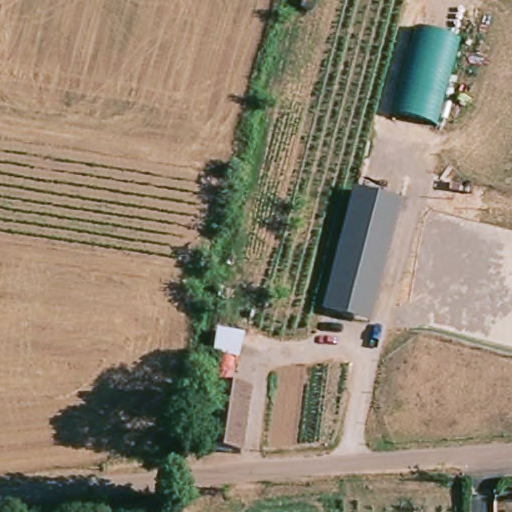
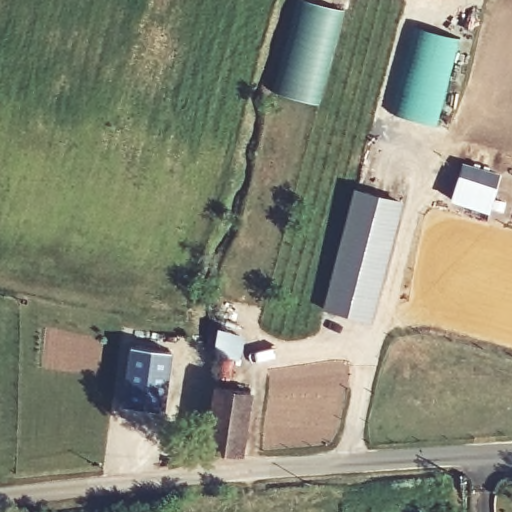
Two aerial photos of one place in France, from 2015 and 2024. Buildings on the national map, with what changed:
new [(298,0),(312,0),(344,9),(319,104),(273,90),(298,0)]
unchanged [(459,39),(438,127),(393,115),(414,28),(459,39)]
new [(459,179),(496,190),(489,211),(453,200),(459,179)]
unchanged [(374,321),(324,310),(355,187),(404,201),(374,321)]
new [(217,327),(245,334),(239,359),(214,354),(217,327)]
new [(128,343),(174,350),(165,410),(118,404),(128,343)]
unchanged [(206,450),(211,386),(248,388),(243,450),(206,450)]

